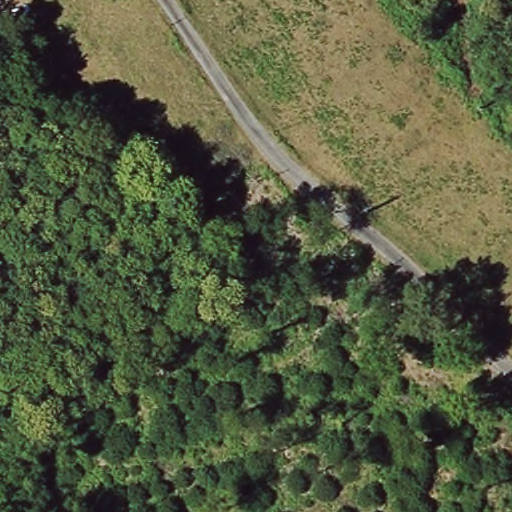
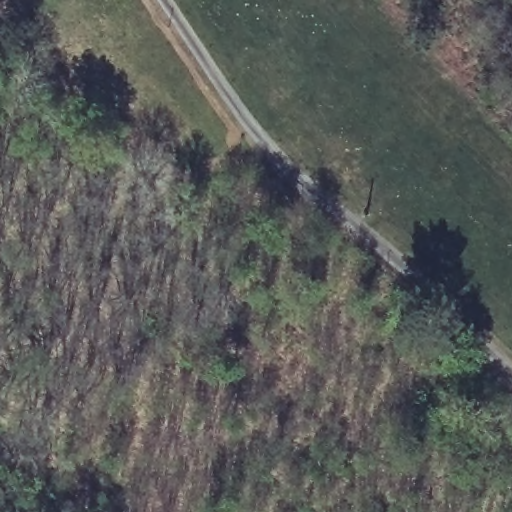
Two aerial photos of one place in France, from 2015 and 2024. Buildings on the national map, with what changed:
[]

